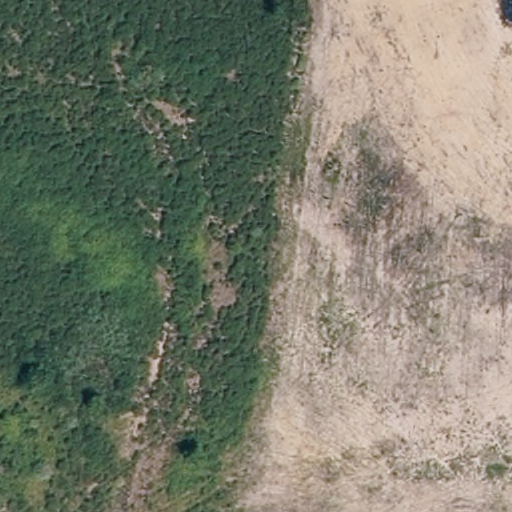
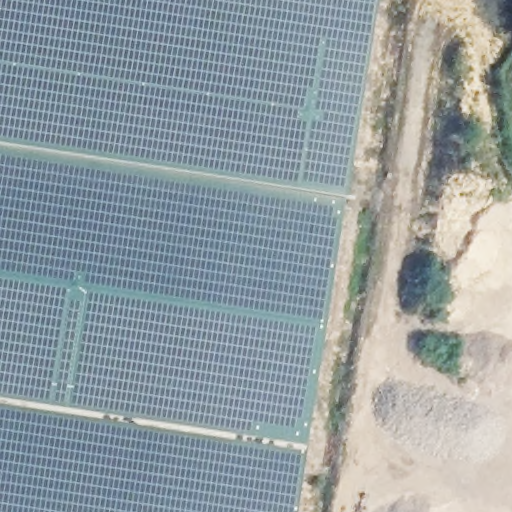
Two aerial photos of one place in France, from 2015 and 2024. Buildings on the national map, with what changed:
new [(297,512),(0,512),(0,0),(374,0),(345,192),(297,512)]

